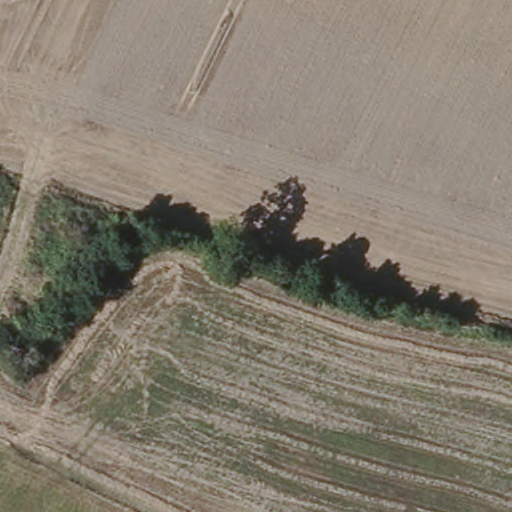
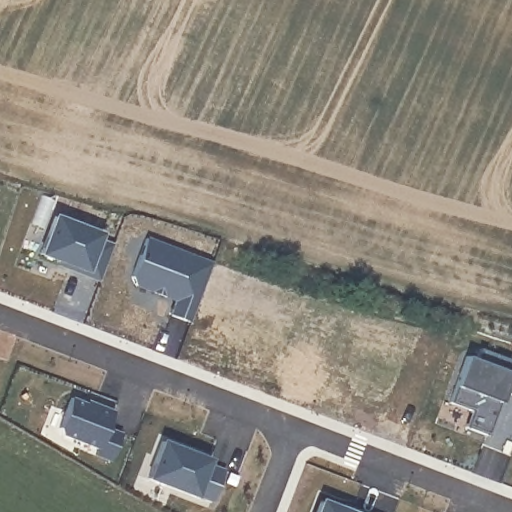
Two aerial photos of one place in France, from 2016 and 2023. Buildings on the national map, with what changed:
new [(100,239),(98,247),(111,251),(97,285),(65,273),(67,269),(41,259),(56,222),(100,239)]
new [(211,267),(188,326),(171,320),(176,304),(135,290),(131,282),(146,244),(211,267)]
new [(512,395),(501,392),(497,402),(502,404),(489,439),(465,431),(471,414),(449,406),(466,358),(475,361),(480,349),(512,360),(512,395)]
new [(95,411),(95,408),(113,414),(106,433),(120,439),(110,465),(95,459),(97,455),(61,442),(60,429),(70,403),(95,411)]
new [(160,446),(207,462),(205,467),(221,474),(210,504),(193,497),(192,499),(147,482),(160,446)]
new [(346,512),(316,512),(319,505),(346,512)]

